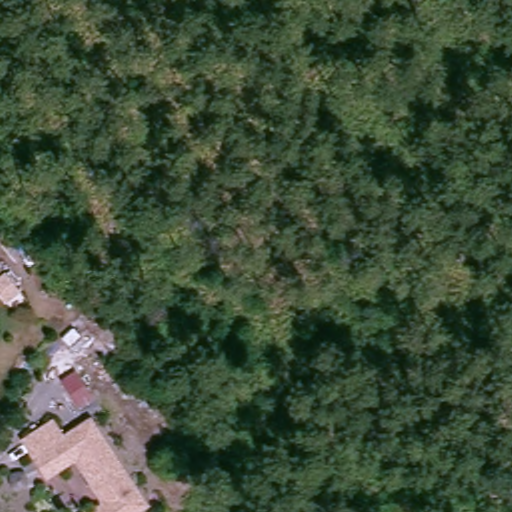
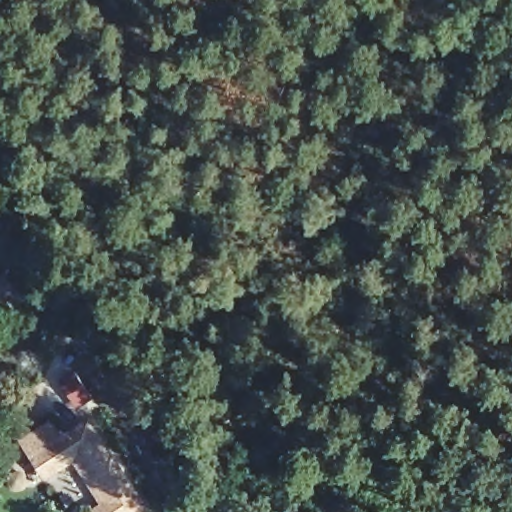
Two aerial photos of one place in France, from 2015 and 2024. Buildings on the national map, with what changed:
unchanged [(42,473),(17,436),(47,416),(58,432),(85,414),(143,502),(127,512),(82,512),(92,505),(62,459),(42,473)]

